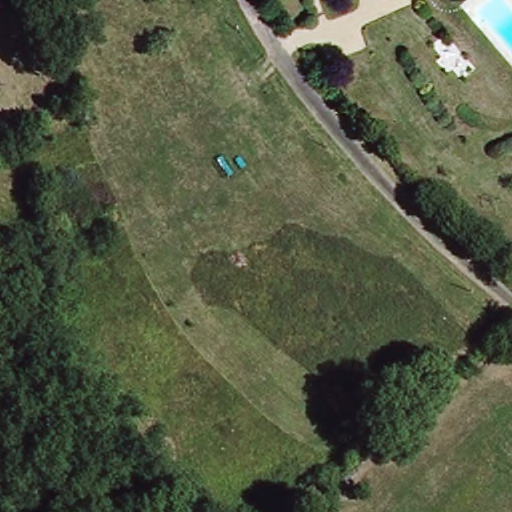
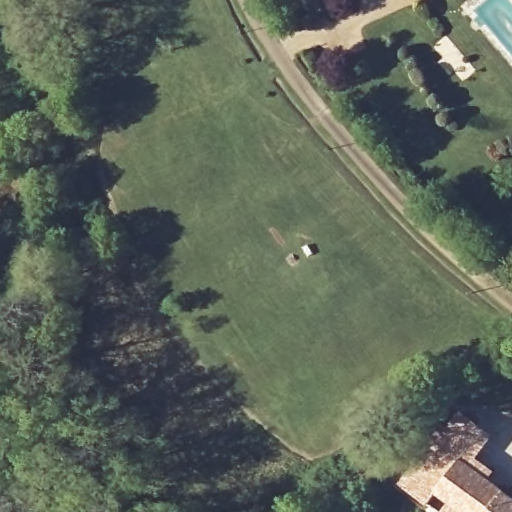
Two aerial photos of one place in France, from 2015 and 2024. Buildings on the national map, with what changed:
new [(453,404),(493,434),(477,457),(495,471),(490,477),(512,494),(512,512),(437,512),(443,504),(435,497),(427,507),(396,483),(425,439),(453,404)]

